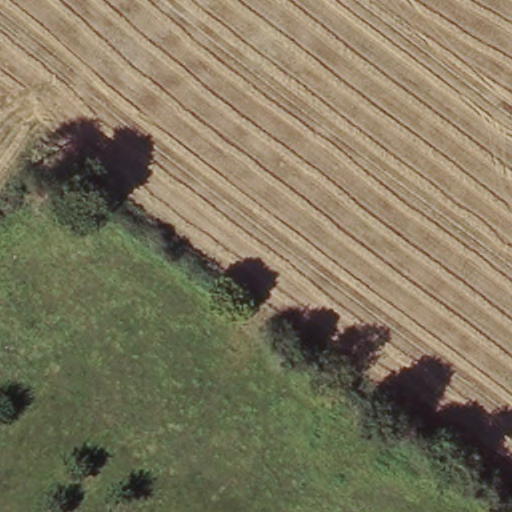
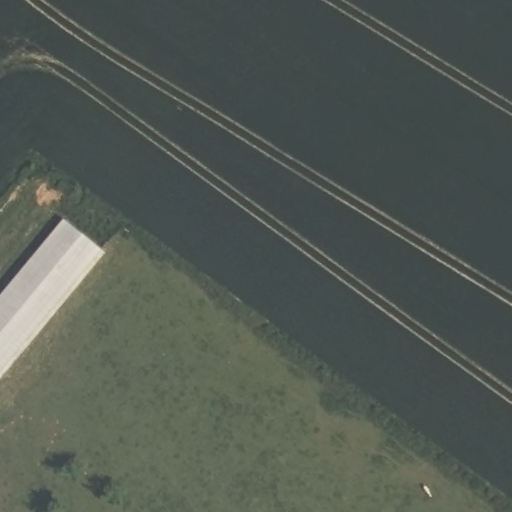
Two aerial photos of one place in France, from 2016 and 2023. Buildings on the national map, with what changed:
demolished [(244,27),(263,47),(249,64),(229,46),(244,27)]
new [(75,219),(116,251),(0,378),(0,304),(75,219)]

